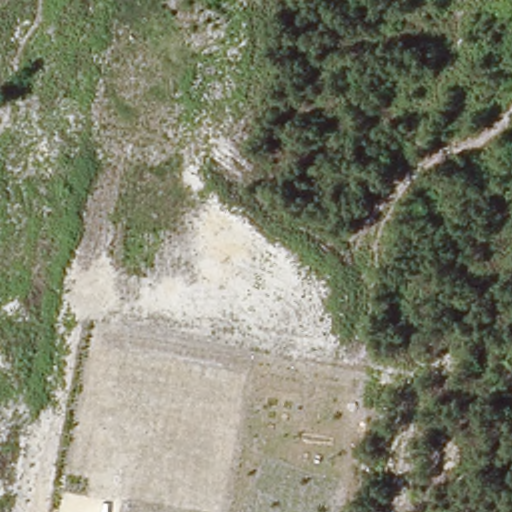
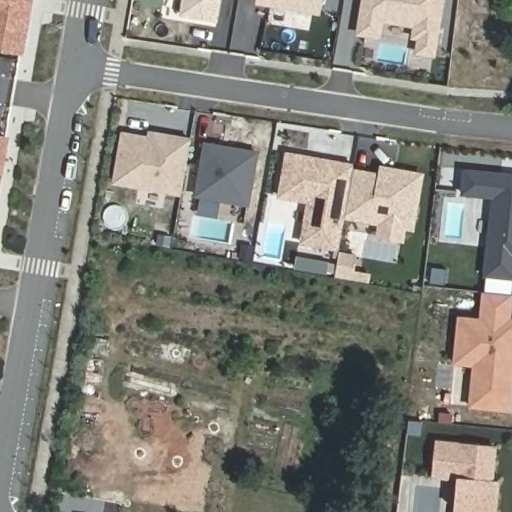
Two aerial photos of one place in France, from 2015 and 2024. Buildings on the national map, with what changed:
new [(30,0),(22,42),(21,52),(0,48),(0,0),(30,0)]
new [(181,15),(184,0),(220,0),(216,21),(181,15)]
new [(257,2),(258,0),(322,0),(320,14),(257,2)]
new [(364,0),(443,0),(433,55),(417,52),(420,37),(414,37),(416,26),(381,20),(378,37),(365,34),(359,33),(361,21),(364,0)]
new [(149,139),(150,133),(174,137),(191,140),(181,195),(114,182),(123,134),(149,139)]
new [(6,139),(0,173),(0,138),(6,139)]
new [(257,153),(248,205),(196,196),(205,144),(257,153)]
new [(287,154),(353,166),(352,172),(344,217),(339,249),(302,242),(309,202),(280,197),(287,154)]
new [(352,172),(381,176),(382,172),(394,175),(394,171),(421,176),(412,229),(344,217),(352,172)]
new [(512,278),(485,276),(493,197),(462,194),(465,171),(512,176),(512,278)]
new [(481,320),(484,292),(512,295),(509,320),(512,320),(512,392),(510,411),(470,407),(474,365),(454,363),(456,352),(459,318),(481,320)]
new [(454,510),(460,511),(463,480),(432,477),(435,442),(495,448),(492,481),(498,482),(495,512),(454,512),(454,510)]

